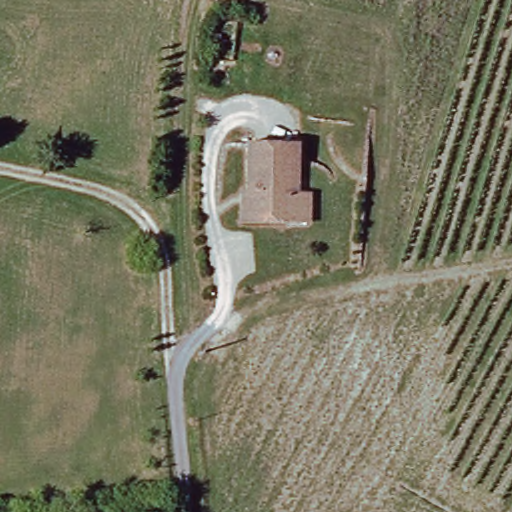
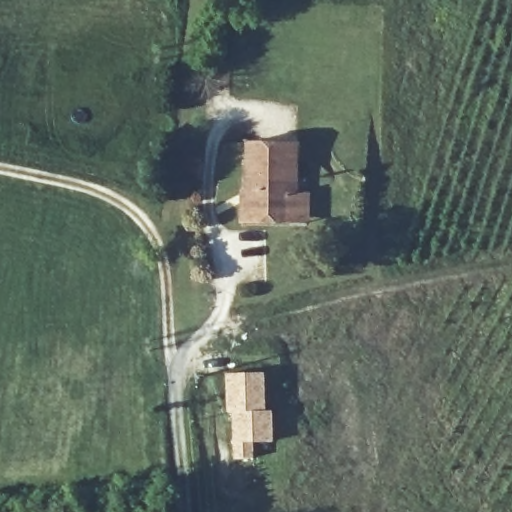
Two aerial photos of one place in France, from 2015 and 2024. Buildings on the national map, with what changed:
unchanged [(303,227),(286,224),(238,218),(241,200),(246,196),(254,139),(301,145),(294,196),(307,198),(303,227)]
new [(264,371),(266,410),(226,413),(224,372),(264,371)]
new [(266,410),(272,410),(273,441),(253,442),(253,459),(231,460),(226,413),(266,410)]

